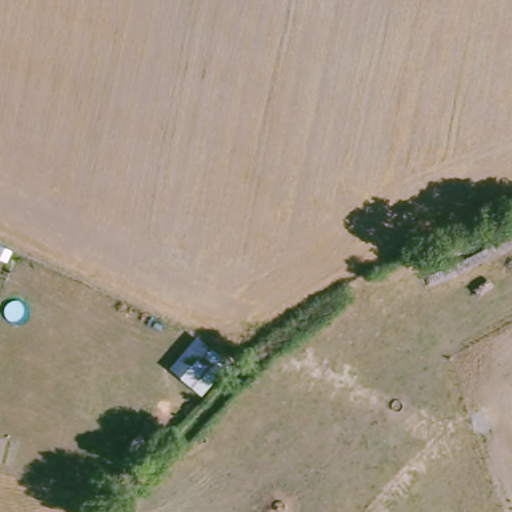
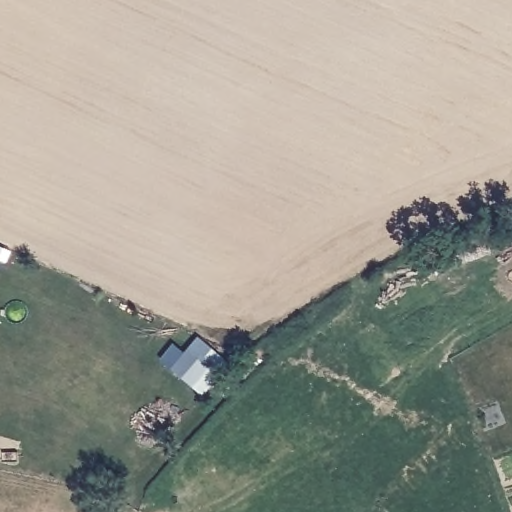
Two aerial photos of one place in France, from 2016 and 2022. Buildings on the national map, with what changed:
unchanged [(227,360),(202,395),(175,370),(197,337),(227,360)]

